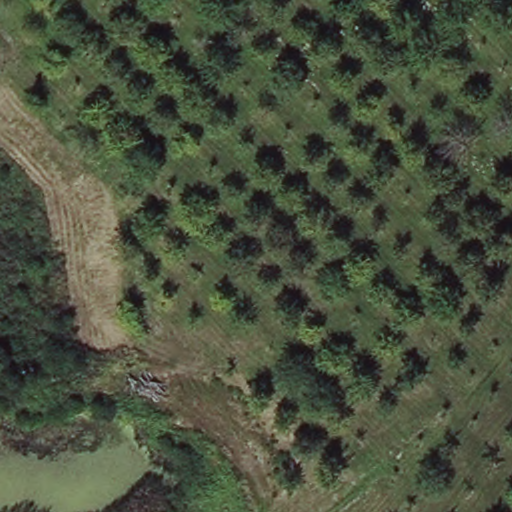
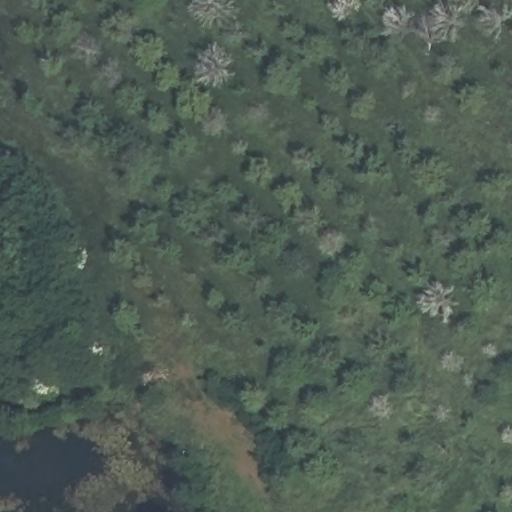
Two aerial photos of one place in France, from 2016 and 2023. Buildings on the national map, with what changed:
[]

